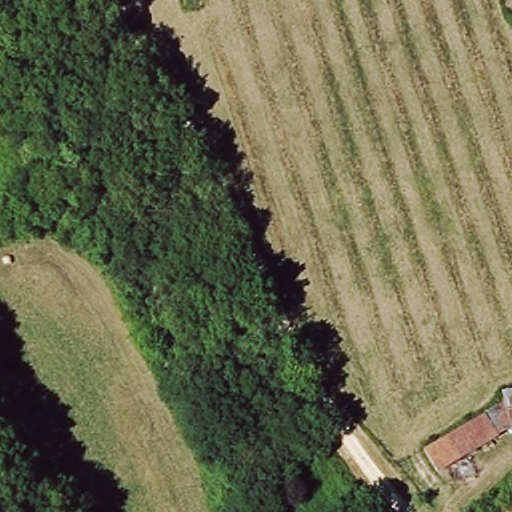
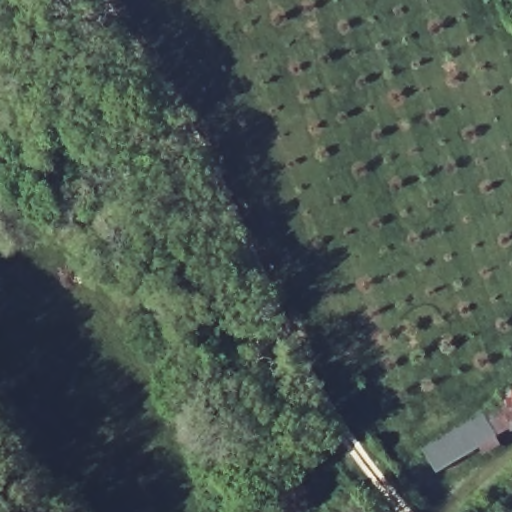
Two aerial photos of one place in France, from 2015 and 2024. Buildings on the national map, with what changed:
unchanged [(512,389),(512,431),(440,473),(423,449),(504,404),(502,391),(512,389)]
unchanged [(512,510),(512,512),(510,512),(512,510)]

